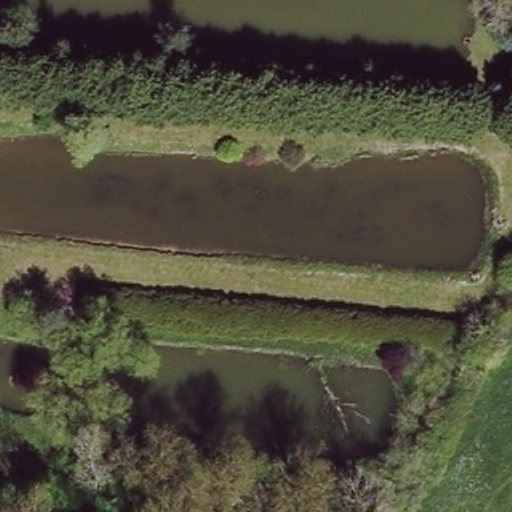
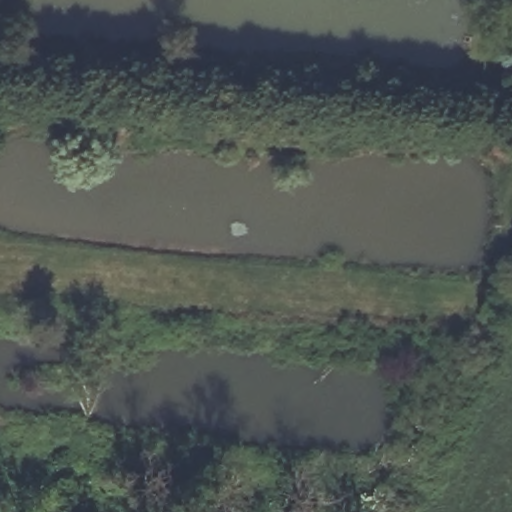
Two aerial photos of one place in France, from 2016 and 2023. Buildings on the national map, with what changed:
[]

